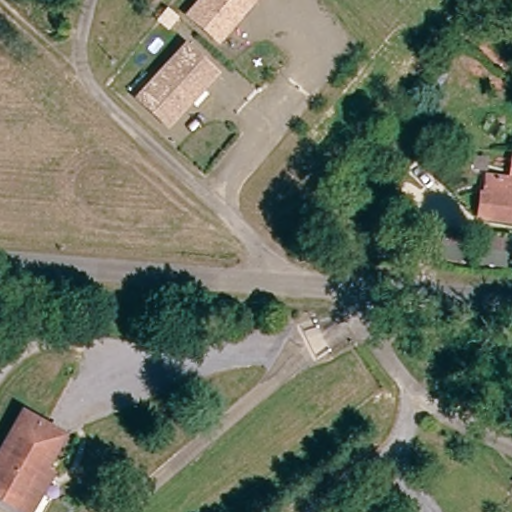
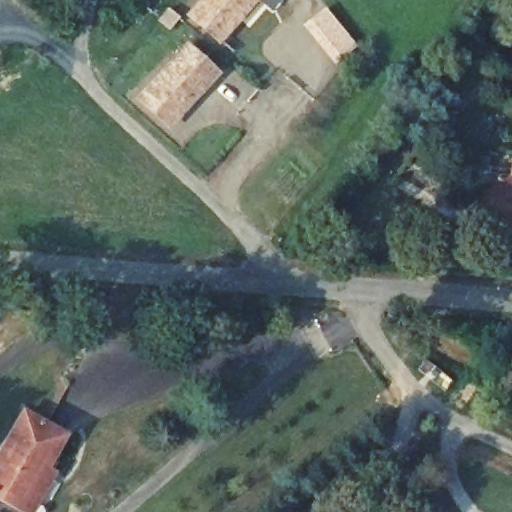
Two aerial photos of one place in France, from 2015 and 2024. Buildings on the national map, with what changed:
unchanged [(187,15),(201,0),(255,0),(217,42),(187,15)]
new [(357,46),(334,65),(302,25),(325,7),(357,46)]
unchanged [(145,101),(195,45),(208,56),(225,73),(214,85),(175,128),(145,101)]
unchanged [(482,190),(486,191),(489,175),(512,178),(512,221),(478,215),(482,190)]
unchanged [(447,230),(462,233),(461,238),(485,244),(487,237),(512,242),(512,254),(509,267),(443,254),(447,230)]
unchanged [(1,497),(0,496),(0,453),(24,410),(67,432),(46,468),(55,473),(36,512),(33,512),(1,497)]

